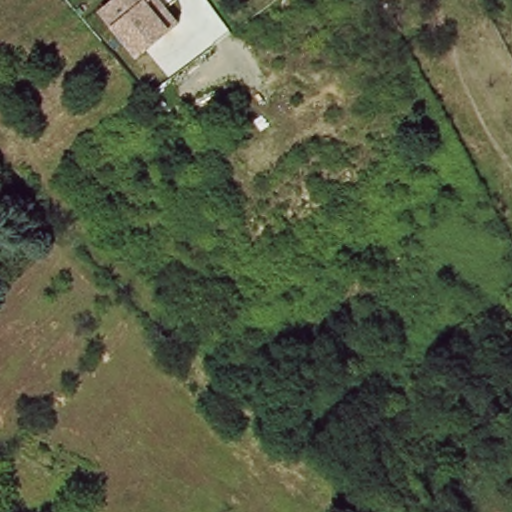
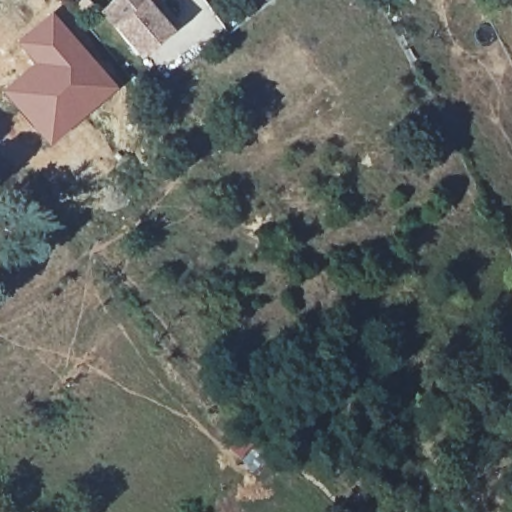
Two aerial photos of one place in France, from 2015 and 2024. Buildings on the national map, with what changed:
unchanged [(107,0),(151,0),(170,22),(162,29),(132,54),(96,10),(107,0)]
new [(29,61),(12,42),(50,10),(115,85),(43,142),(0,92),(0,88),(29,61)]

